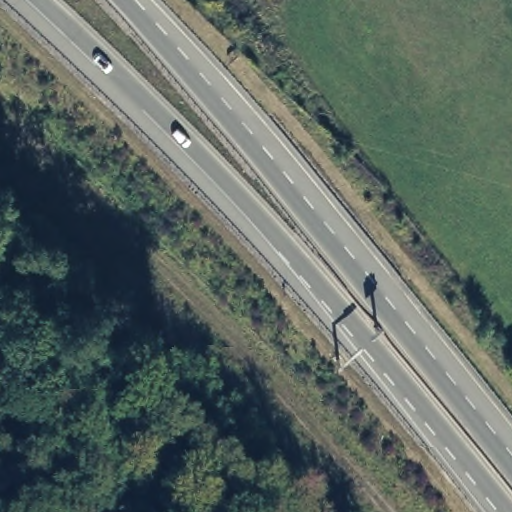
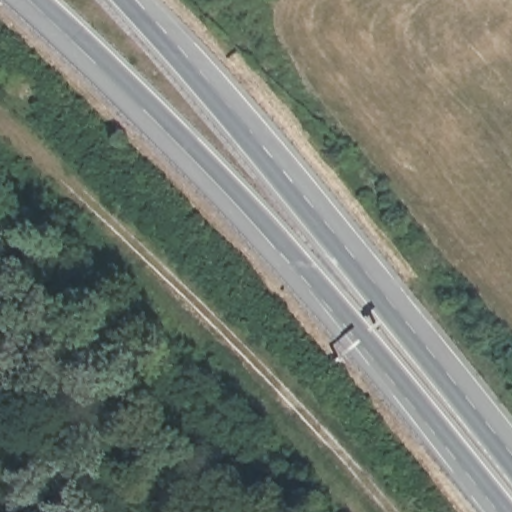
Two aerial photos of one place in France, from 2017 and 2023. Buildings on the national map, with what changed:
[]

